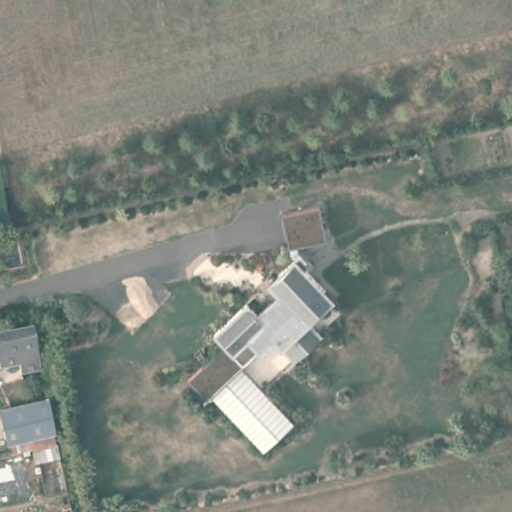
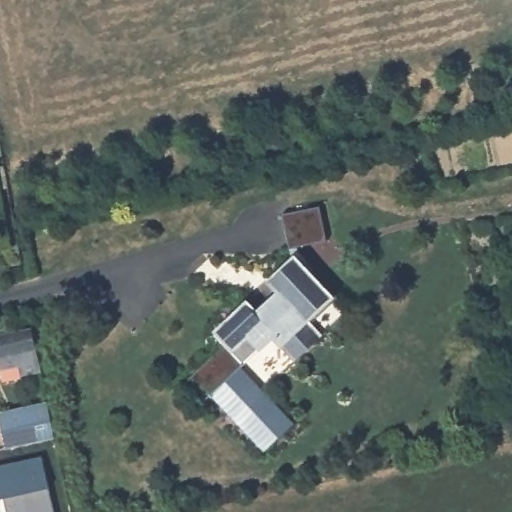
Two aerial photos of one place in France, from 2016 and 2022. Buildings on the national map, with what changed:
unchanged [(320,207),(327,241),(289,249),(282,216),(320,207)]
unchanged [(336,299),(313,320),(325,338),(298,365),(271,342),(245,368),(296,424),(265,453),(211,398),(204,402),(189,378),(221,346),(211,333),(246,299),(257,310),(275,295),(265,283),(295,256),(336,299)]
unchanged [(40,370),(21,375),(19,365),(0,369),(0,329),(30,323),(35,344),(40,370)]
unchanged [(45,451),(44,450),(42,442),(40,443),(19,447),(15,449),(6,415),(56,402),(60,420),(63,437),(65,446),(45,451)]
new [(49,487),(54,512),(8,512),(5,497),(0,499),(0,464),(40,456),(47,488),(49,487)]
demolished [(65,510),(57,511),(56,506),(64,505),(65,510)]

